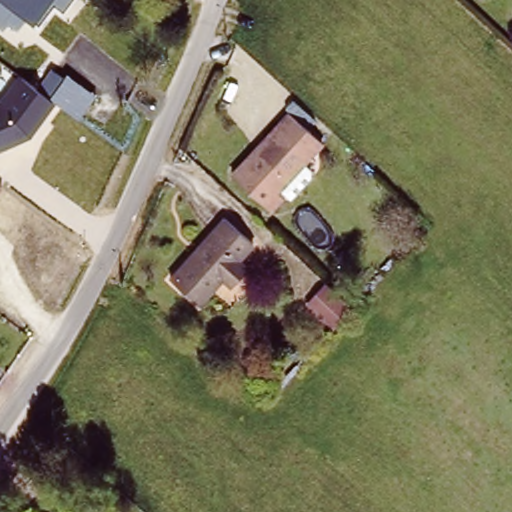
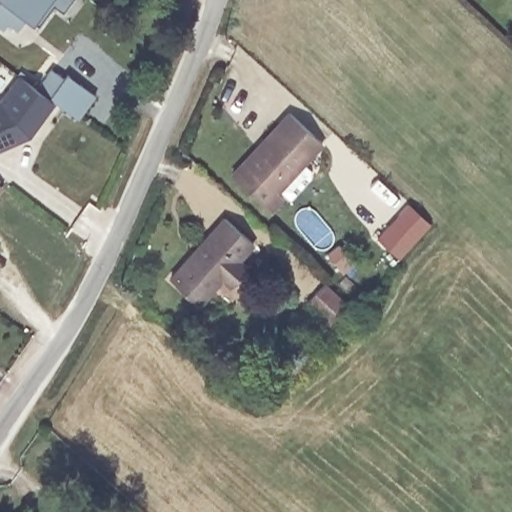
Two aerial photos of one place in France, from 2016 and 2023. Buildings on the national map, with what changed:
unchanged [(64,12),(55,6),(37,27),(30,20),(20,29),(11,22),(5,30),(0,26),(0,0),(72,0),(64,12)]
unchanged [(17,76),(37,87),(48,70),(61,79),(65,73),(95,92),(80,117),(55,102),(31,139),(0,152),(0,100),(17,76)]
unchanged [(324,139),(280,186),(285,191),(273,205),(235,170),(291,109),(324,139)]
unchanged [(3,187),(0,192),(0,186),(3,187)]
new [(410,207),(430,226),(397,262),(376,243),(410,207)]
unchanged [(252,236),(240,251),(246,259),(230,277),(222,270),(198,293),(172,269),(227,211),(252,236)]
unchanged [(339,322),(307,292),(325,273),(356,302),(339,322)]

